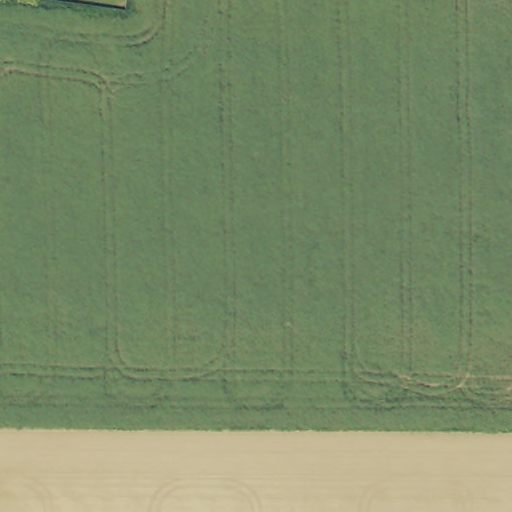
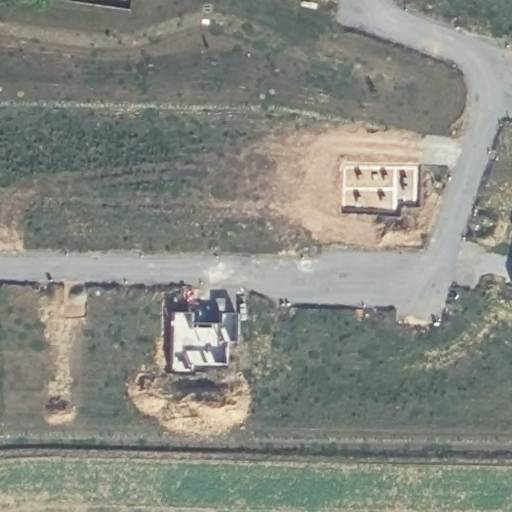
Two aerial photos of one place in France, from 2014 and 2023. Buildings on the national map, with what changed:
[]

